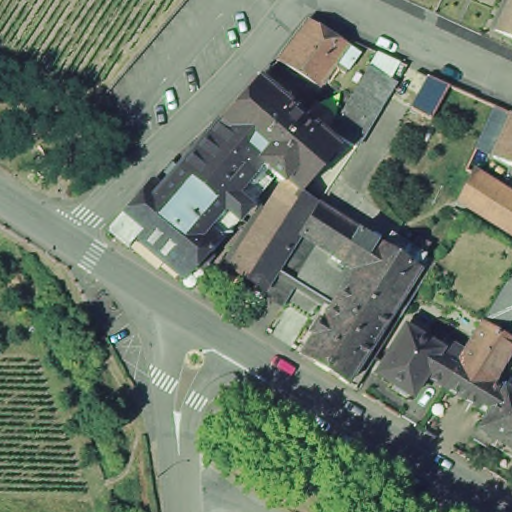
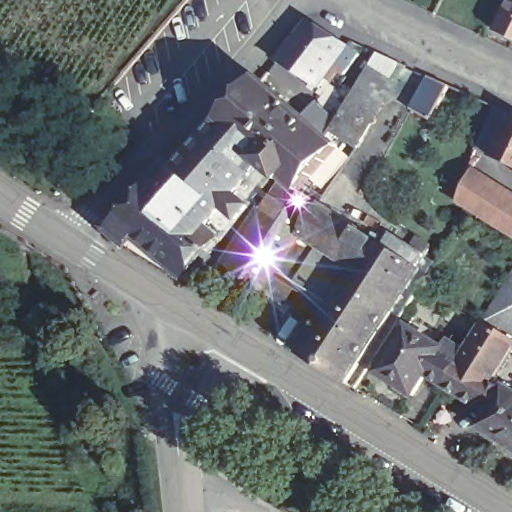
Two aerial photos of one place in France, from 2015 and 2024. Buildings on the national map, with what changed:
unchanged [(490,35),(506,0),(512,0),(512,45),(490,35)]
unchanged [(338,68),(330,80),(325,77),(319,87),(277,59),(308,20),(347,45),(360,53),(349,68),(345,73),(338,68)]
unchanged [(140,198),(151,198),(260,80),(327,141),(377,57),(402,73),(349,163),(316,205),(419,276),(347,393),(320,380),(292,357),(325,306),(277,280),(263,300),(219,266),(280,190),(259,171),(196,236),(214,249),(187,287),(107,231),(140,198)]
unchanged [(448,84),(430,117),(410,106),(427,75),(448,84)]
unchanged [(497,165),(485,160),(505,118),(512,121),(512,172),(497,165)]
unchanged [(471,175),(512,202),(512,237),(457,203),(471,175)]
unchanged [(482,324),(512,276),(512,343),(482,324)]
unchanged [(512,343),(512,357),(494,386),(504,393),(488,418),(443,390),(425,379),(412,398),(410,397),(407,400),(393,391),(395,387),(377,376),(406,329),(440,349),(445,341),(465,353),(482,324),(512,343)]
unchanged [(504,393),(505,390),(512,395),(512,451),(480,431),(488,418),(504,393)]

